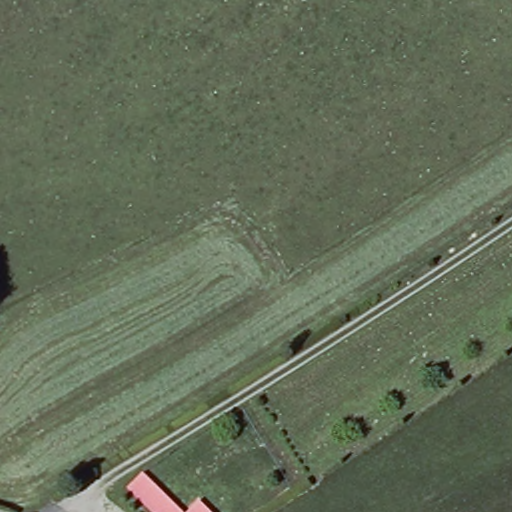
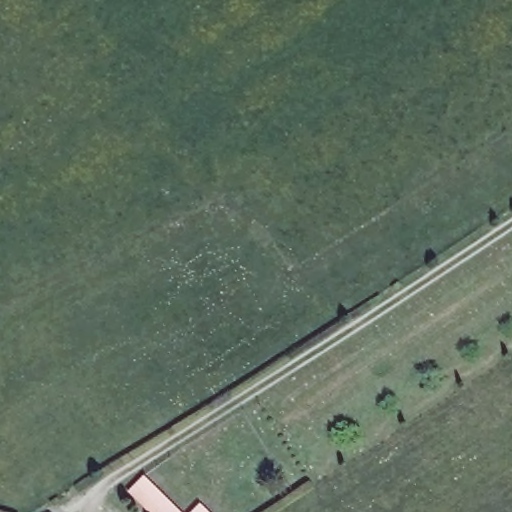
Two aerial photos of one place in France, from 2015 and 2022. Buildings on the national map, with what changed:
unchanged [(128,493),(143,476),(181,512),(147,512),(128,493)]
unchanged [(198,505),(205,512),(186,512),(198,505)]

